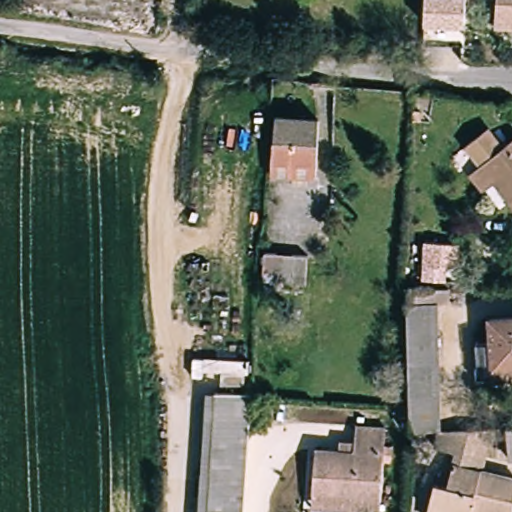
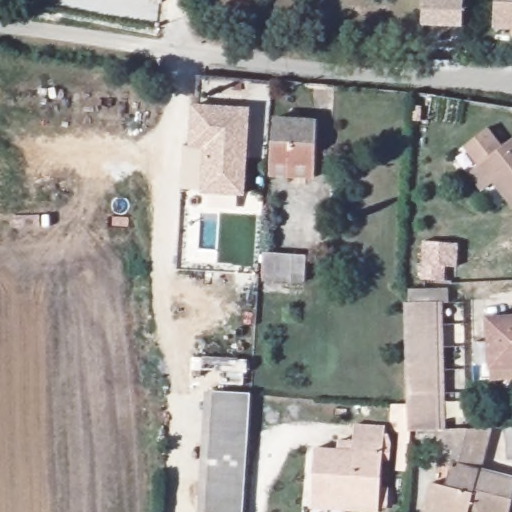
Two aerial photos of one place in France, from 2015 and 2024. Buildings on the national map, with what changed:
new [(464,0),(462,23),(422,20),(423,0),(464,0)]
unchanged [(491,26),(493,0),(512,0),(512,28),(491,26)]
unchanged [(345,65),(333,66),(332,55),(345,54),(345,65)]
new [(192,102),(250,104),(242,190),(202,189),(205,143),(190,142),(192,102)]
unchanged [(310,177),(265,173),(268,121),(315,125),(310,177)]
unchanged [(500,146),(512,158),(512,218),(505,224),(448,163),(470,145),(485,159),(500,146)]
new [(453,252),(454,274),(421,275),(420,252),(453,252)]
unchanged [(258,285),(260,255),(303,259),(302,288),(258,285)]
unchanged [(437,399),(405,401),(405,319),(405,305),(437,305),(437,399)]
unchanged [(480,369),(479,344),(488,343),(488,319),(512,318),(512,379),(480,381),(480,369)]
unchanged [(200,394),(245,395),(245,405),(242,454),(239,512),(193,512),(200,394)]
unchanged [(437,399),(437,431),(405,432),(405,417),(405,401),(437,399)]
unchanged [(502,456),(502,428),(512,427),(512,455),(502,456)]
unchanged [(360,437),(387,436),(385,511),(310,510),(314,459),(360,460),(360,437)]
unchanged [(480,471),(512,478),(512,501),(509,512),(477,512),(470,511),(469,512),(427,512),(423,511),(433,482),(442,484),(455,447),(485,455),(480,471)]

